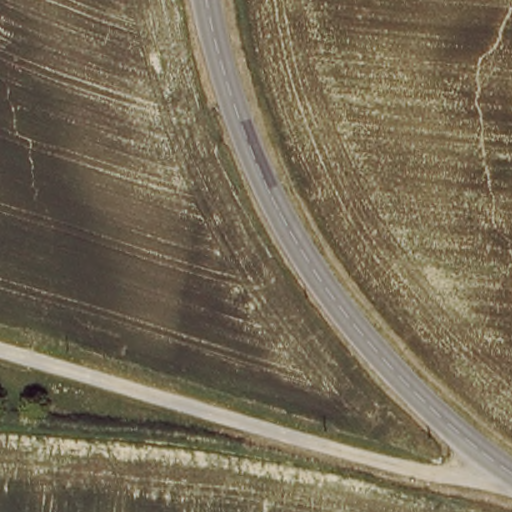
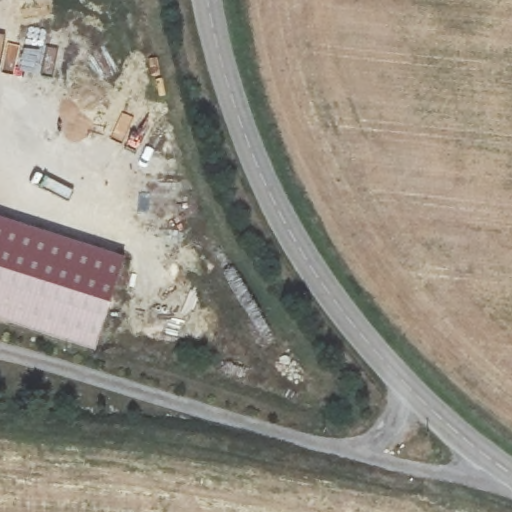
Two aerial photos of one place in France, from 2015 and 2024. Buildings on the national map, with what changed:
new [(125,258),(97,351),(0,321),(0,218),(125,258)]

